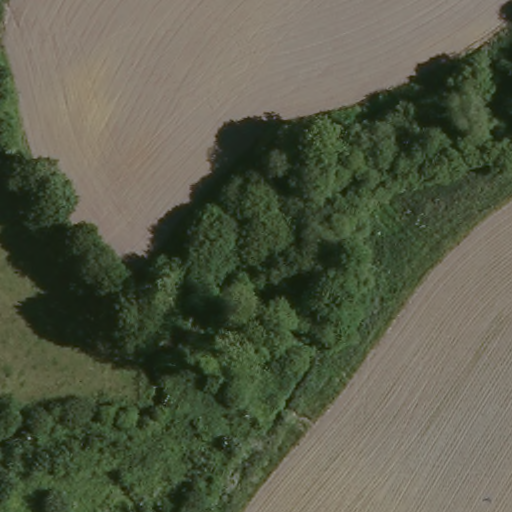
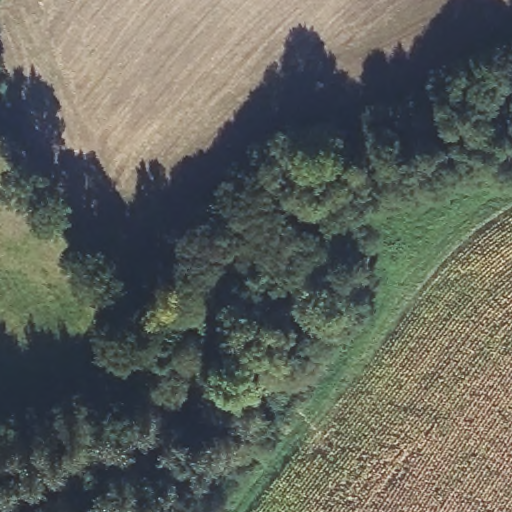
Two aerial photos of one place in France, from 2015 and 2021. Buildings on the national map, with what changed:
[]

